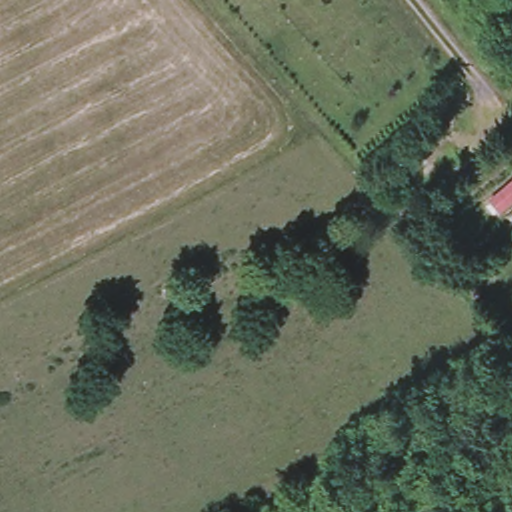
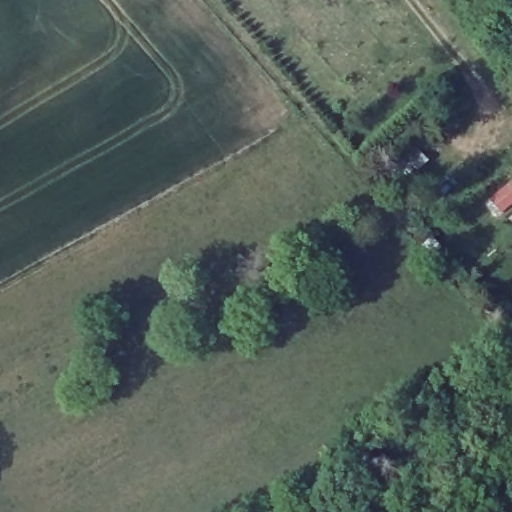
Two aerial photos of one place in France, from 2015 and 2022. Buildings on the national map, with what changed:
unchanged [(506,185),(512,179),(512,193),(506,185)]

